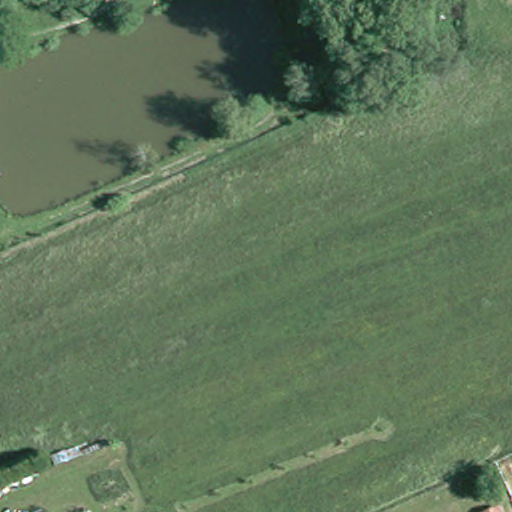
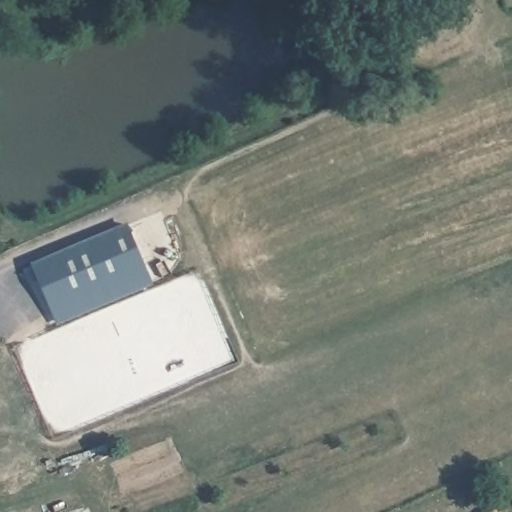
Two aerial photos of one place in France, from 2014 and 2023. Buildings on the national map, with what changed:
new [(31,263),(127,222),(153,284),(57,324),(31,263)]

